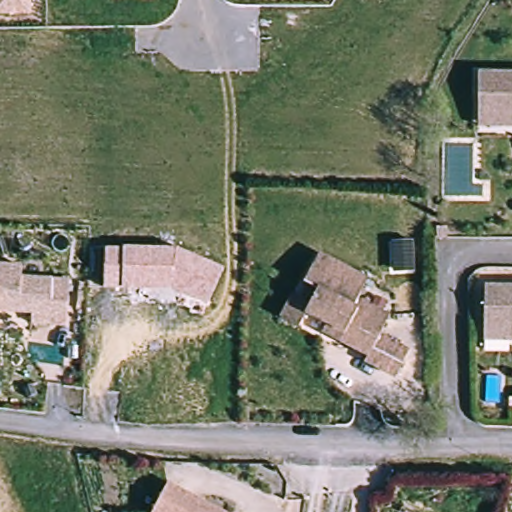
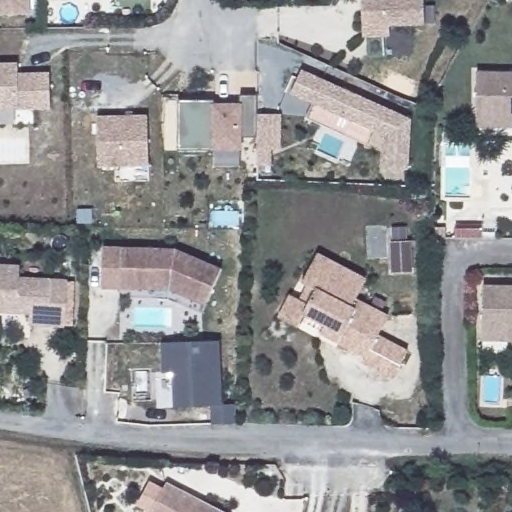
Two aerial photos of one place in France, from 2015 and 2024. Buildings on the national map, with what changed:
unchanged [(0,17),(0,0),(30,0),(30,16),(0,17)]
new [(388,27),(388,37),(361,37),(361,0),(424,0),(424,26),(388,27)]
new [(0,117),(0,72),(5,71),(5,82),(47,81),(48,116),(33,116),(16,117),(0,117)]
new [(5,71),(16,71),(16,82),(5,82),(5,71)]
unchanged [(477,117),(477,72),(512,72),(512,128),(477,128),(477,117)]
new [(299,79),(409,129),(410,179),(383,179),(383,146),(374,142),(312,113),(288,102),(299,79)]
new [(281,145),(270,145),(271,162),(258,163),(257,137),(241,137),(240,149),(178,149),(178,100),(215,99),(215,104),(239,105),(239,95),(257,95),(257,113),(280,112),(281,145)]
new [(374,142),(367,156),(305,127),(312,113),(374,142)]
new [(143,124),(144,174),(94,175),(93,125),(143,124)]
unchanged [(443,233),(444,244),(433,244),(433,233),(443,233)]
new [(388,241),(408,244),(404,271),(384,268),(388,241)]
unchanged [(176,249),(224,268),(204,306),(171,289),(123,286),(105,287),(105,250),(123,249),(176,249)]
unchanged [(329,325),(310,315),(301,333),(278,320),(289,297),(300,302),(309,285),(303,282),(319,252),(367,276),(359,294),(391,310),(382,330),(414,347),(400,374),(369,358),(370,355),(345,341),(325,331),(329,325)]
unchanged [(20,265),(20,277),(68,279),(65,328),(30,326),(30,315),(0,313),(0,264),(20,265)]
unchanged [(485,333),(484,287),(512,287),(512,341),(485,341),(485,333)]
new [(174,405),(157,405),(157,370),(164,370),(164,339),(222,340),(221,405),(239,405),(239,421),(214,421),(215,405),(174,405)]
unchanged [(157,510),(168,485),(220,512),(156,512),(157,510)]

